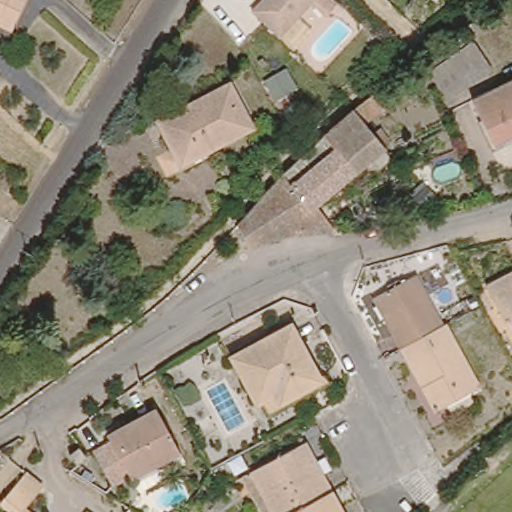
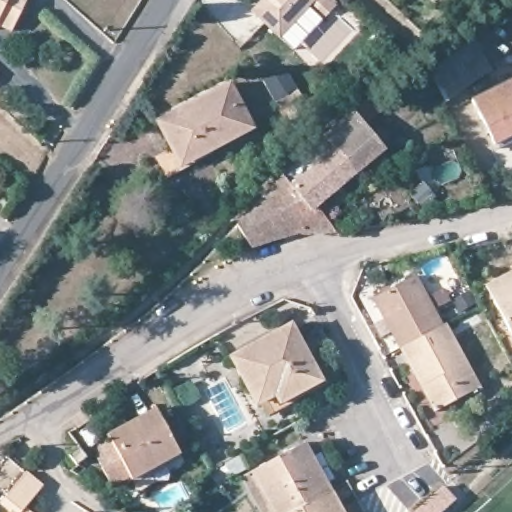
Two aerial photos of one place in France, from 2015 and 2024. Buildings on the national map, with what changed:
unchanged [(13,35),(0,29),(0,0),(30,0),(13,35)]
unchanged [(260,0),(310,0),(277,37),(254,17),(249,12),(260,0)]
unchanged [(335,2),(325,14),(310,0),(334,0),(335,2)]
unchanged [(484,70),(440,91),(428,67),(468,37),(484,70)]
unchanged [(472,97),(512,78),(512,139),(497,147),(495,142),(472,97)]
unchanged [(178,172),(172,161),(153,122),(227,86),(250,132),(207,154),(208,156),(178,172)]
unchanged [(0,88),(7,95),(0,103),(0,88)]
unchanged [(333,234),(308,236),(297,234),(251,247),(237,225),(275,185),(327,135),(334,129),(374,97),(383,110),(365,126),(385,151),(315,209),(333,234)]
unchanged [(501,321),(493,307),(482,287),(510,272),(512,271),(512,340),(501,321)]
unchanged [(446,311),(394,336),(387,327),(380,330),(372,316),(379,312),(372,300),(427,274),(446,311)]
unchanged [(264,402),(248,375),(241,378),(231,360),(295,327),(313,363),(323,381),(287,402),(283,393),(264,402)]
unchanged [(422,395),(399,355),(445,332),(481,398),(445,417),(428,391),(422,395)]
unchanged [(176,450),(130,477),(107,440),(151,411),(176,450)]
unchanged [(298,512),(260,512),(241,477),(304,443),(332,493),(298,512)]
unchanged [(100,468),(90,475),(82,465),(93,457),(100,468)]
unchanged [(2,503),(28,473),(43,485),(25,508),(29,512),(8,512),(10,510),(2,503)]
new [(443,512),(415,512),(443,486),(457,500),(443,512)]
unchanged [(341,512),(298,512),(332,493),(341,512)]
unchanged [(97,507),(102,512),(88,512),(93,506),(97,507)]

